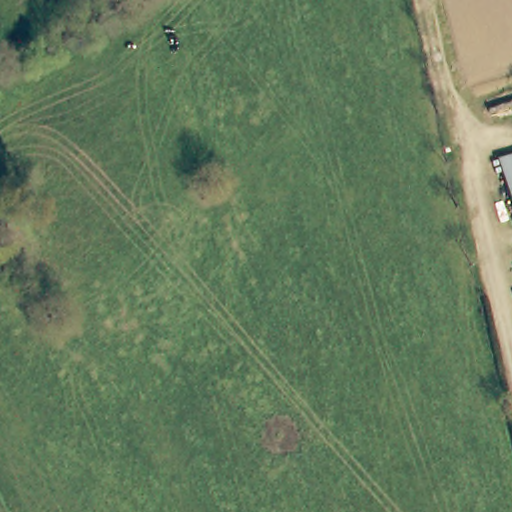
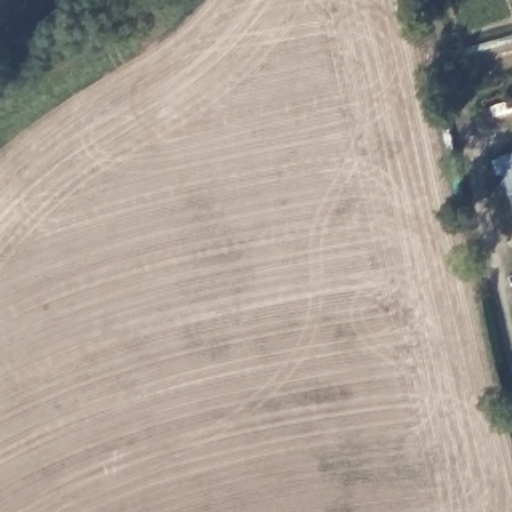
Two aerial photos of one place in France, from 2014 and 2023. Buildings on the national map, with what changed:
unchanged [(497,159),(512,153),(512,207),(497,159)]

